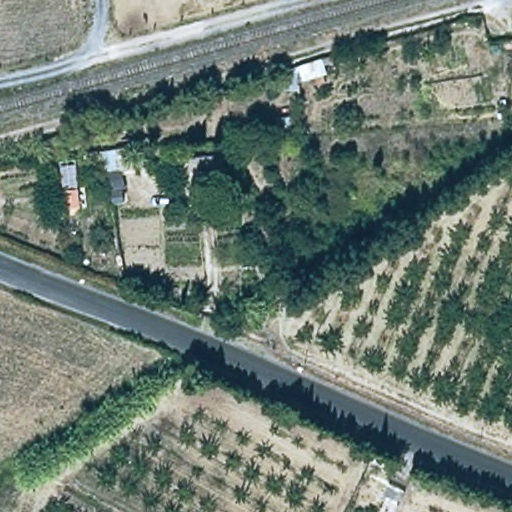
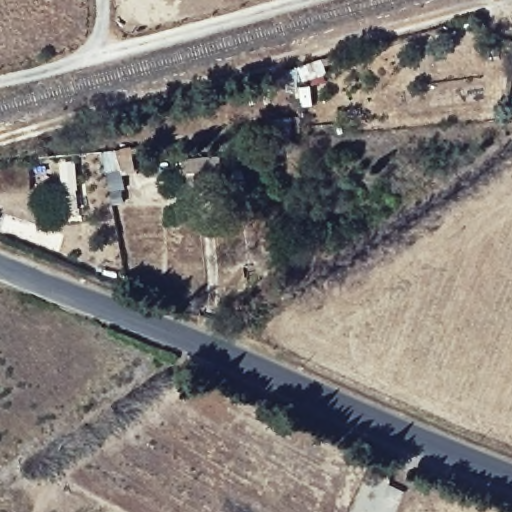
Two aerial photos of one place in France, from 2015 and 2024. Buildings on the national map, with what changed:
unchanged [(122,144),(125,175),(108,179),(101,146),(122,144)]
unchanged [(226,148),(226,184),(185,185),(181,151),(226,148)]

